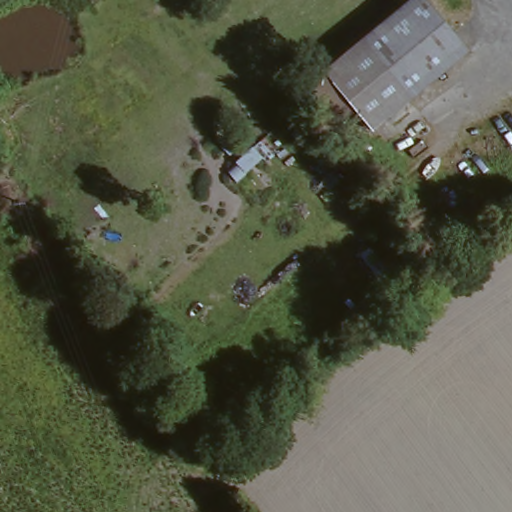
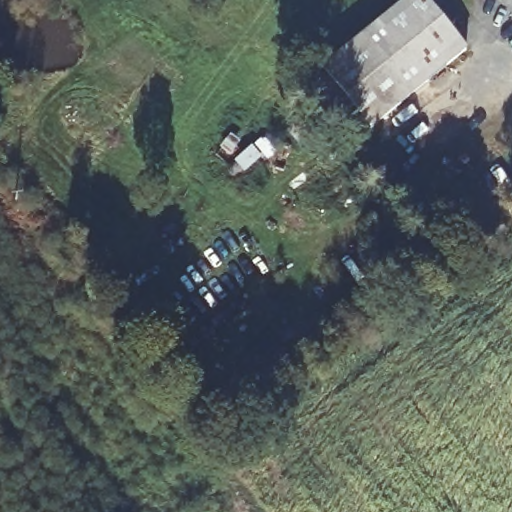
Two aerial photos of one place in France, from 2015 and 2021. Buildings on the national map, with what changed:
unchanged [(323,71),(414,0),(428,0),(468,54),(371,131),(323,71)]

